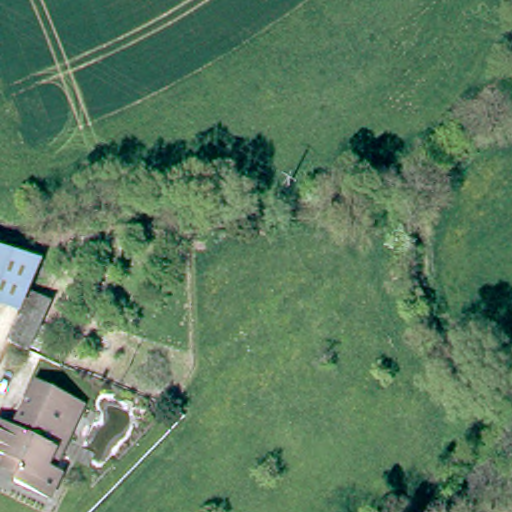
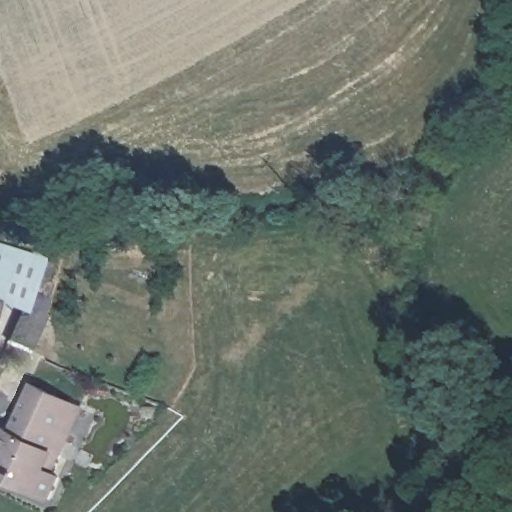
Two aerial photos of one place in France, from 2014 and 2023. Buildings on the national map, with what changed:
unchanged [(27,292),(17,316),(0,309),(0,263),(32,276),(27,292)]
unchanged [(27,292),(49,303),(27,352),(8,345),(5,343),(17,316),(27,292)]
unchanged [(8,458),(0,455),(0,427),(13,431),(30,385),(70,399),(84,404),(59,473),(65,475),(57,497),(18,483),(20,476),(5,470),(8,458)]

